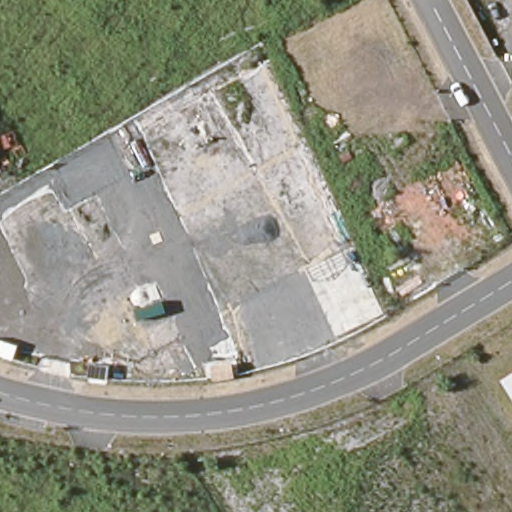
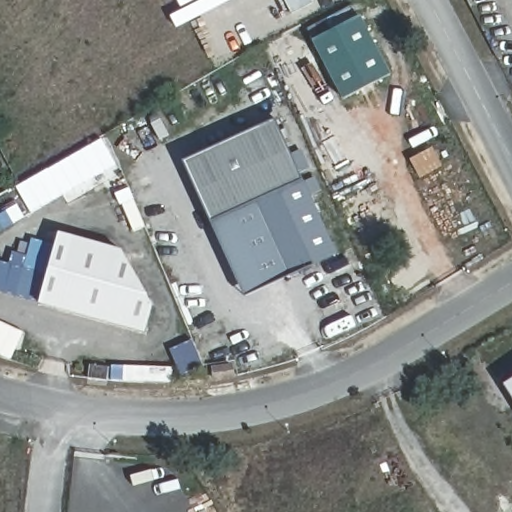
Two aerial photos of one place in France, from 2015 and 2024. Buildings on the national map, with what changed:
new [(343,99),(312,41),(360,15),(391,74),(343,99)]
new [(280,118),(306,178),(340,253),(293,274),(246,293),(188,160),(280,118)]
new [(103,138),(122,170),(70,200),(52,168),(103,138)]
new [(153,299),(143,332),(37,302),(57,231),(127,250),(153,299)]
unchanged [(505,385),(512,381),(512,396),(505,385)]

